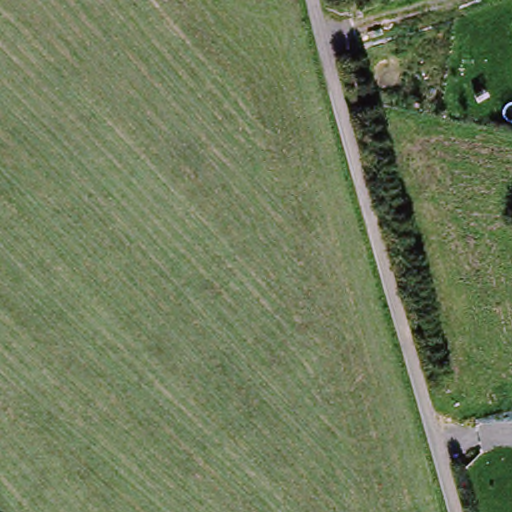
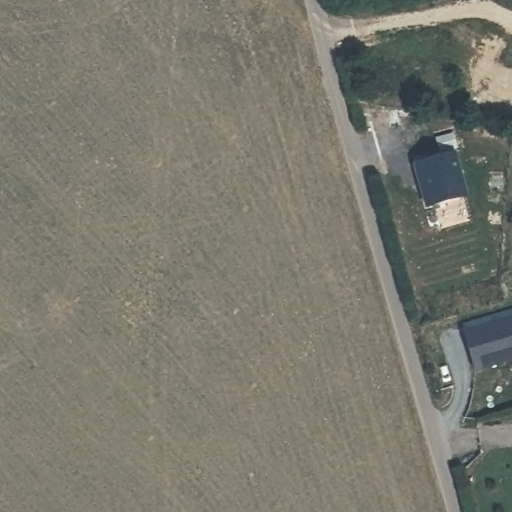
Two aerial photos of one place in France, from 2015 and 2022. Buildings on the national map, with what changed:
new [(453,158),(468,207),(428,219),(414,170),(453,158)]
new [(512,314),(512,358),(472,369),(461,328),(512,314)]

